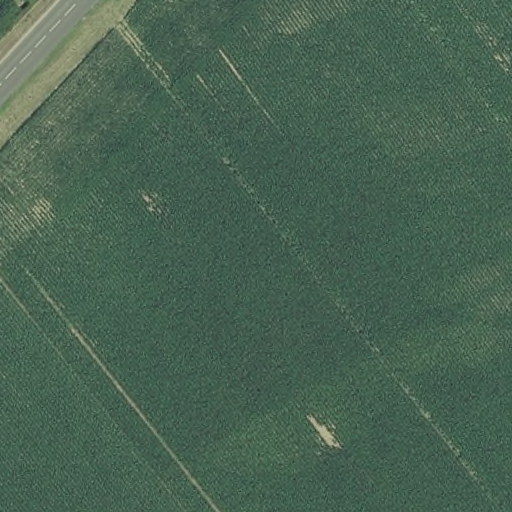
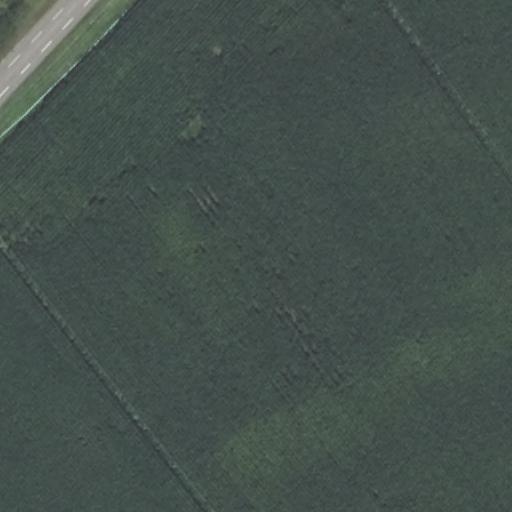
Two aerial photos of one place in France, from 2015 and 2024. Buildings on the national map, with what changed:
[]

